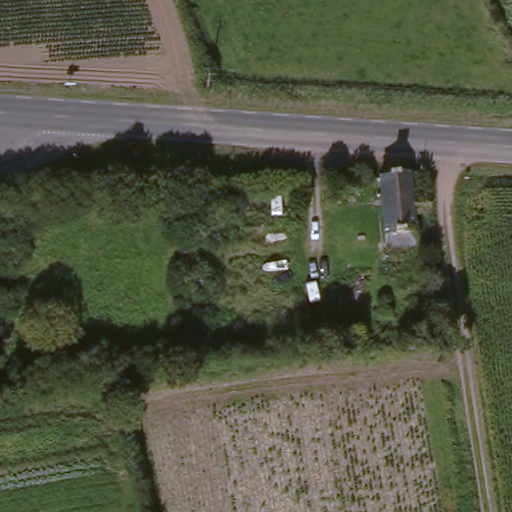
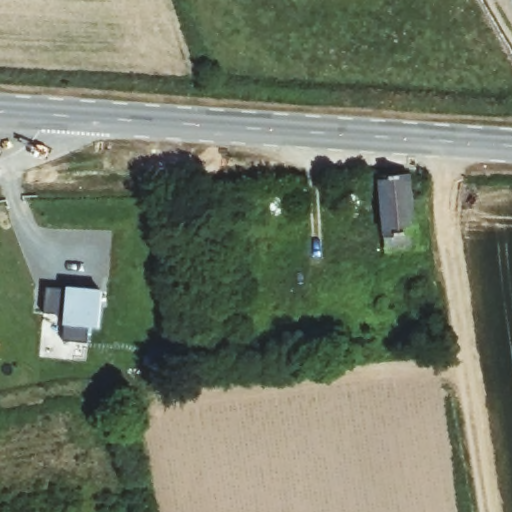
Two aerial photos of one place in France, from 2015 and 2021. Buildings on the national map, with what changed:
unchanged [(384,249),(375,175),(407,173),(417,243),(384,249)]
new [(66,290),(67,285),(102,290),(97,328),(90,327),(88,341),(65,340),(67,325),(64,325),(65,315),(45,313),(47,288),(66,290)]

